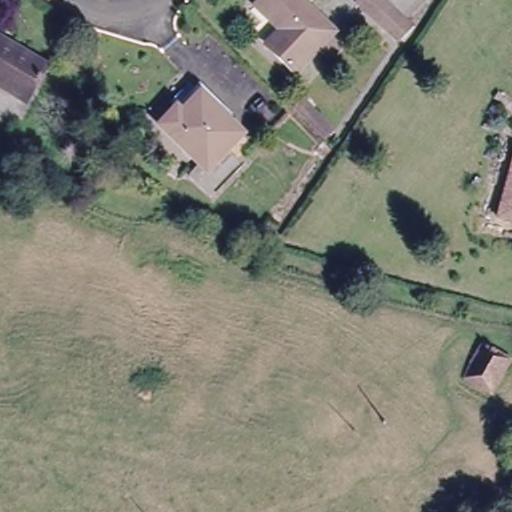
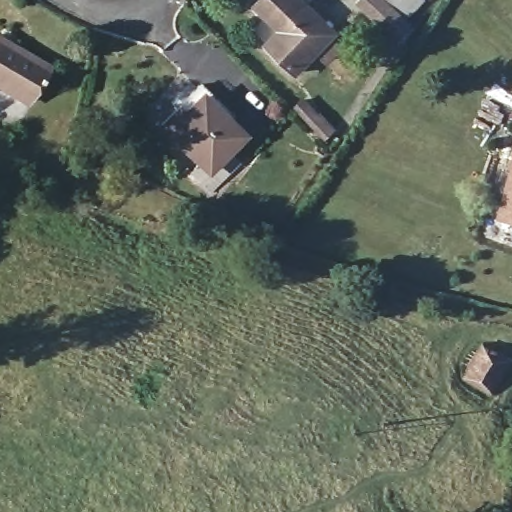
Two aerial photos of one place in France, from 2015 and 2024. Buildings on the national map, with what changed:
unchanged [(302,73),(269,48),(280,36),(255,15),(267,0),(301,0),(336,27),(302,73)]
unchanged [(358,0),(392,0),(407,12),(393,30),(358,0)]
unchanged [(32,98),(0,79),(0,36),(50,65),(32,98)]
unchanged [(237,141),(207,181),(156,140),(184,100),(237,141)]
unchanged [(496,212),(512,168),(512,218),(496,212)]
unchanged [(492,389),(468,377),(490,339),(512,352),(512,353),(492,389)]

